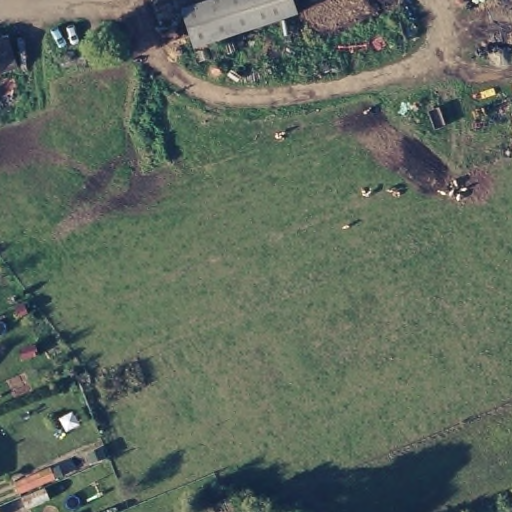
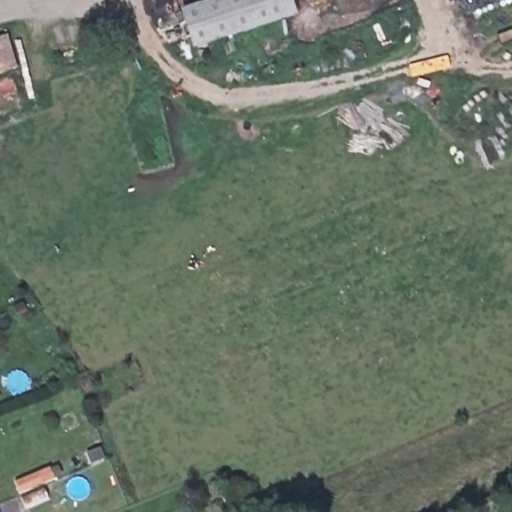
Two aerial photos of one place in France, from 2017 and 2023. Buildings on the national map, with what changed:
unchanged [(296,12),(195,45),(192,36),(182,7),(205,0),(292,0),(294,7),(296,12)]
unchanged [(0,75),(0,71),(1,74),(0,75)]
unchanged [(39,473),(43,484),(21,493),(17,483),(39,473)]

